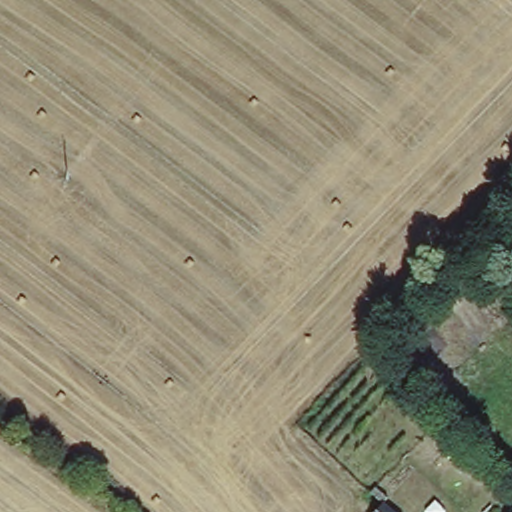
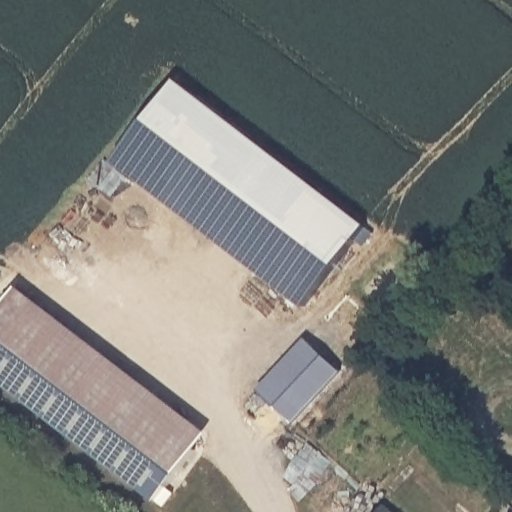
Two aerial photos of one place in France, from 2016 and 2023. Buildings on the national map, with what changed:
new [(367,227),(305,308),(114,162),(176,81),(367,227)]
new [(169,502),(162,497),(0,380),(0,311),(17,288),(211,429),(171,484),(178,489),(169,502)]
new [(294,424),(257,391),(306,339),(342,373),(294,424)]
unchanged [(385,498),(401,512),(373,512),(385,498)]

